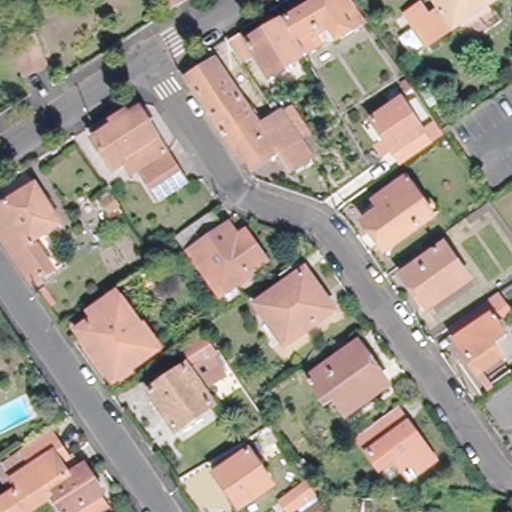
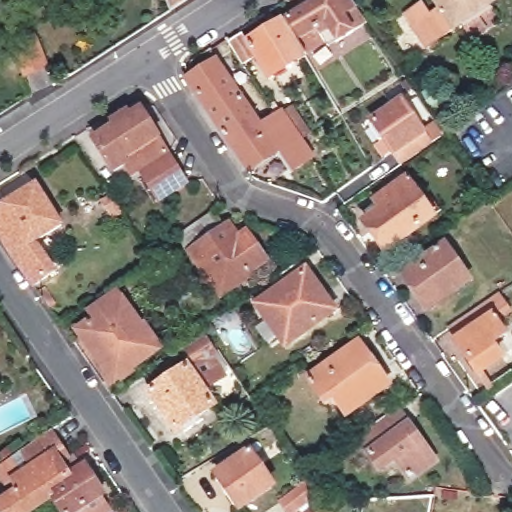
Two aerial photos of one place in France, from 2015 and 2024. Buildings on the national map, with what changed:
unchanged [(176,10),(171,0),(192,0),(176,10)]
unchanged [(339,39),(328,21),(319,26),(326,39),(307,51),(286,17),(313,0),(353,0),(368,21),(339,39)]
unchanged [(496,1),(427,50),(413,29),(409,32),(401,19),(420,6),(429,18),(442,9),(435,0),(495,0),(496,1)]
unchanged [(268,75),(256,55),(248,59),(243,62),(228,39),(243,30),(249,39),(286,17),(307,51),(268,75)]
unchanged [(20,29),(24,40),(34,37),(46,67),(23,76),(6,34),(20,29)]
unchanged [(318,152),(294,169),(282,151),(255,170),(237,144),(192,77),(220,58),(260,118),(283,102),(305,134),(318,152)]
unchanged [(447,98),(431,109),(422,95),(438,84),(447,98)]
unchanged [(421,129),(429,124),(437,135),(398,161),(391,151),(390,152),(370,121),(401,100),(421,129)]
unchanged [(164,199),(146,171),(149,170),(139,153),(125,161),(128,166),(118,172),(99,142),(144,114),(171,156),(188,183),(164,199)]
unchanged [(364,221),(381,210),(375,201),(406,180),(433,216),(384,250),(364,221)]
unchanged [(11,249),(0,233),(0,204),(36,182),(63,224),(35,241),(54,268),(34,282),(11,249)]
unchanged [(113,215),(106,205),(113,200),(120,210),(113,215)]
unchanged [(226,237),(232,233),(243,247),(250,242),(269,268),(226,299),(197,258),(203,254),(199,249),(189,256),(181,244),(214,221),(226,237)]
unchanged [(446,245),(472,281),(430,311),(403,274),(446,245)]
unchanged [(333,311),(288,344),(259,304),(304,271),(333,311)]
unchanged [(140,329),(143,328),(155,345),(112,375),(80,329),(96,318),(91,311),(116,294),(140,329)]
unchanged [(504,343),(493,351),(501,364),(478,379),(457,349),(459,347),(449,333),(483,310),(504,343)]
unchanged [(338,396),(328,403),(309,378),(361,339),(392,381),(350,412),(338,396)]
unchanged [(193,355),(214,342),(225,357),(203,371),(193,355)]
unchanged [(180,438),(156,401),(193,377),(217,414),(180,438)]
unchanged [(437,455),(420,468),(410,455),(386,471),(363,438),(403,408),(437,455)]
unchanged [(23,496),(15,485),(35,472),(22,453),(50,434),(68,461),(72,459),(81,471),(85,468),(105,496),(100,500),(108,512),(59,512),(53,503),(39,512),(0,512),(0,509),(1,511),(23,496)]
unchanged [(246,506),(244,502),(240,505),(221,476),(225,474),(224,472),(257,450),(279,483),(246,506)]
unchanged [(315,496),(295,510),(286,498),(307,484),(315,496)]

